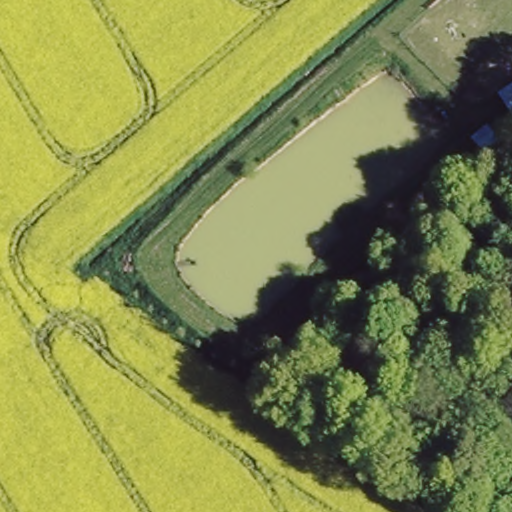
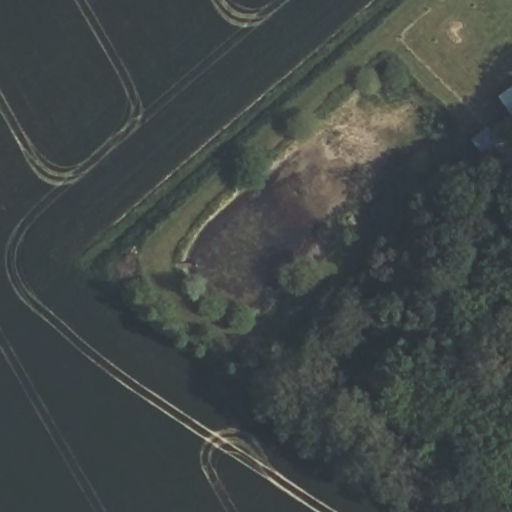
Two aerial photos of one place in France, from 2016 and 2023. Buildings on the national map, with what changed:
[]

